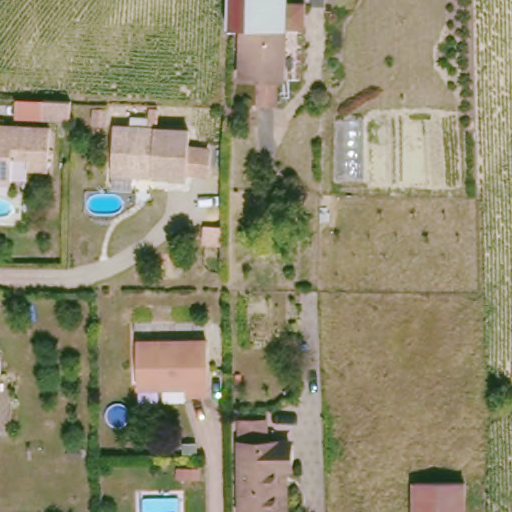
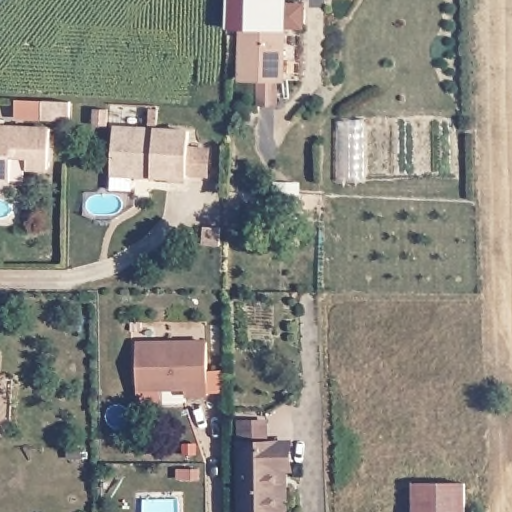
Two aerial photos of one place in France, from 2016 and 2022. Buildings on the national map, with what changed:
unchanged [(244,25),(227,24),(228,0),(288,0),(287,26),(244,25)]
unchanged [(285,75),(244,74),(244,25),(287,26),(285,75)]
unchanged [(69,125),(42,124),(44,103),(70,105),(69,125)]
unchanged [(109,160),(110,120),(185,122),(185,140),(205,141),(204,166),(184,166),(184,170),(150,168),(109,167),(109,160)]
unchanged [(26,171),(24,169),(24,160),(7,160),(5,186),(0,186),(0,129),(46,132),(45,172),(26,171)]
unchanged [(200,396),(180,395),(180,387),(157,385),(150,381),(132,378),(137,337),(205,343),(200,396)]
unchanged [(0,420),(0,353),(5,353),(0,420)]
unchanged [(277,467),(276,512),(261,511),(261,512),(239,512),(239,438),(241,438),(242,417),(265,417),(265,439),(287,439),(287,467),(277,467)]
unchanged [(417,483),(466,483),(466,512),(417,512),(417,483)]

